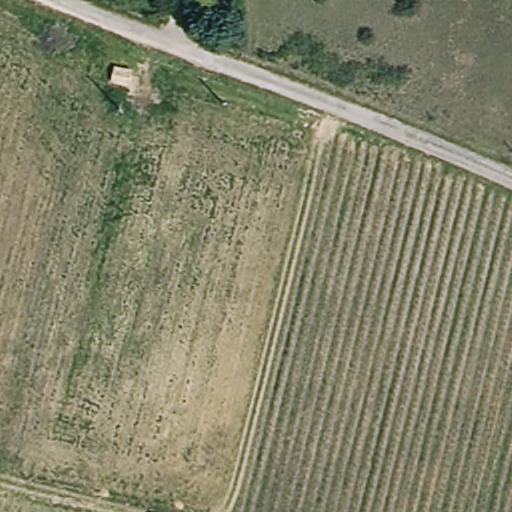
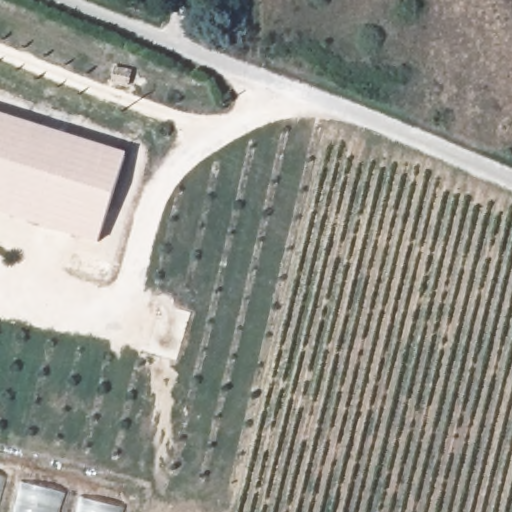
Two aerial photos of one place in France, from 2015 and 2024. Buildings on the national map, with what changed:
new [(106,248),(0,218),(0,124),(132,162),(106,248)]
new [(0,501),(0,480),(5,481),(0,501)]
new [(65,496),(60,512),(13,512),(20,485),(65,496)]
new [(124,512),(77,512),(81,498),(125,511),(124,512)]

